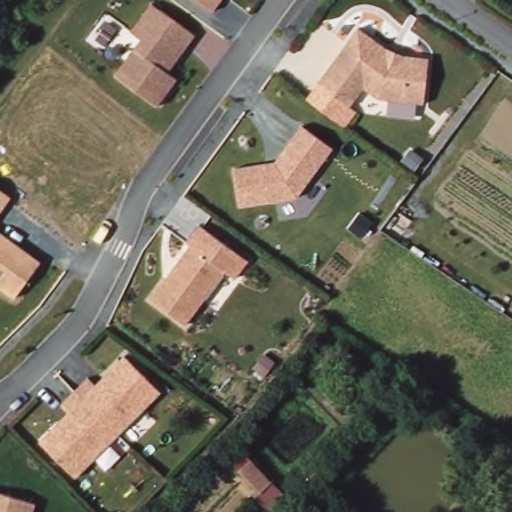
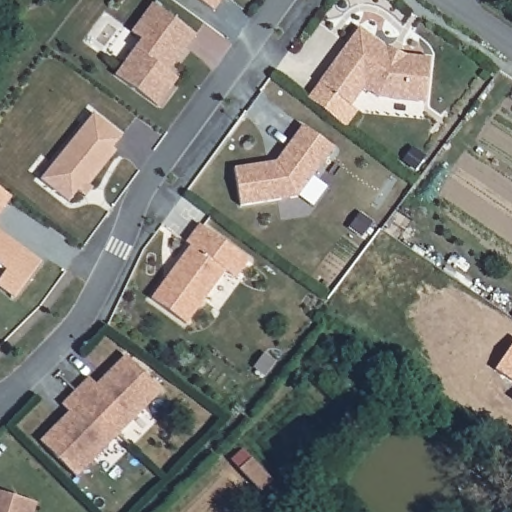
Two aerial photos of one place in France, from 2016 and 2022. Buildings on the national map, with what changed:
unchanged [(215,10),(201,0),(222,0),(215,10)]
unchanged [(145,40),(135,32),(155,4),(198,35),(171,72),(180,79),(160,107),(118,76),(145,40)]
unchanged [(423,104),(377,99),(362,88),(349,106),(317,83),(357,28),(385,49),(405,57),(429,59),(423,104)]
unchanged [(349,106),(357,112),(346,131),(303,99),(317,83),(349,106)]
new [(122,137),(112,148),(116,151),(88,186),(92,189),(84,198),(77,192),(68,202),(40,179),(92,113),(122,137)]
unchanged [(331,148),(292,199),(234,203),(231,166),(273,162),(301,125),(331,148)]
unchanged [(0,218),(0,189),(13,197),(0,218)]
unchanged [(252,260),(239,278),(229,270),(189,324),(155,298),(194,245),(190,241),(202,224),(252,260)]
unchanged [(4,240),(22,253),(26,249),(44,262),(18,298),(0,286),(0,284),(10,271),(0,264),(0,230),(7,235),(4,240)]
unchanged [(66,411),(61,406),(89,378),(94,384),(123,355),(159,391),(72,476),(36,440),(66,411)]
unchanged [(35,512),(0,512),(0,493),(37,503),(35,512)]

